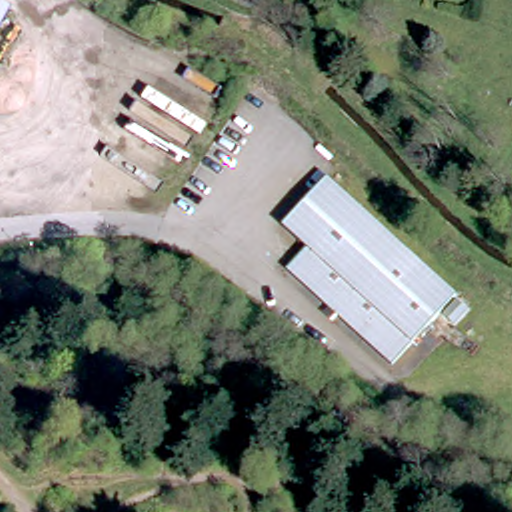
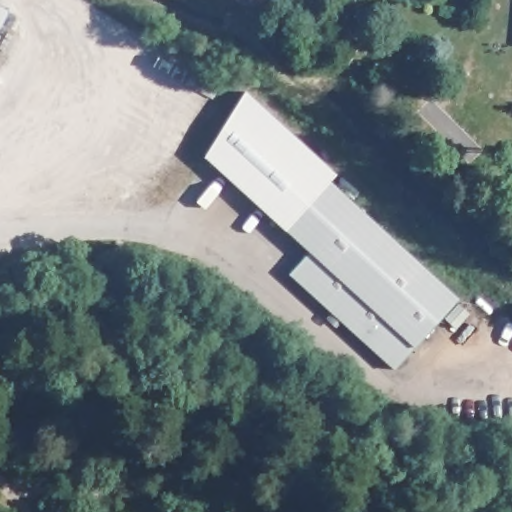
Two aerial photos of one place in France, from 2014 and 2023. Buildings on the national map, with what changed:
unchanged [(12,15),(0,37),(0,8),(12,15)]
new [(336,174),(333,179),(289,227),(286,230),(204,157),(244,90),(336,174)]
unchanged [(333,316),(337,312),(294,272),(314,250),(289,227),(333,179),(464,296),(399,368),(344,318),(340,323),(333,316)]

